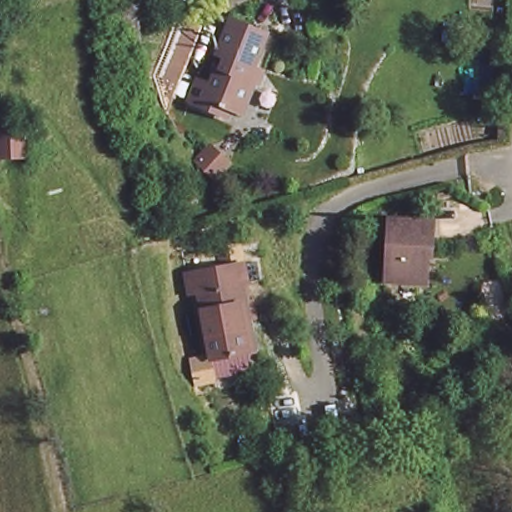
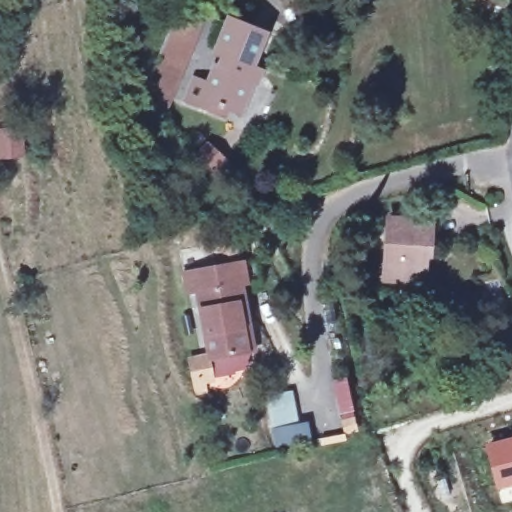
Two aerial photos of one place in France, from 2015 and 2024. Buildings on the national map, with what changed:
unchanged [(163,113),(148,75),(174,7),(202,16),(163,113)]
unchanged [(193,75),(212,83),(218,69),(221,70),(225,59),(217,55),(232,19),(274,37),(257,75),(262,78),(247,112),(223,101),(218,114),(202,106),(184,100),(193,75)]
unchanged [(1,129),(30,129),(30,143),(0,143),(1,129)]
unchanged [(434,224),(428,282),(390,278),(395,222),(434,224)]
unchanged [(212,355),(202,290),(198,270),(238,262),(241,281),(252,346),(212,355)]
new [(512,436),(512,485),(497,490),(485,444),(512,436)]

